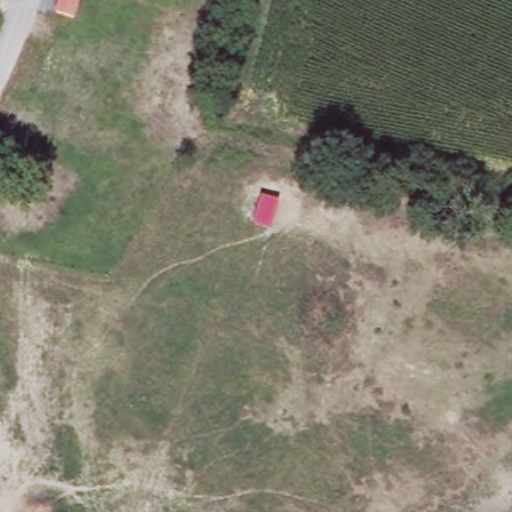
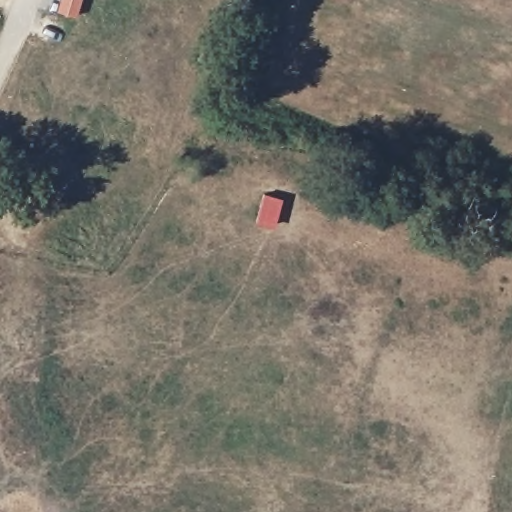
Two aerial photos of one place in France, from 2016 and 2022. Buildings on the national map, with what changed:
unchanged [(64,0),(83,0),(81,9),(64,3),(64,0)]

